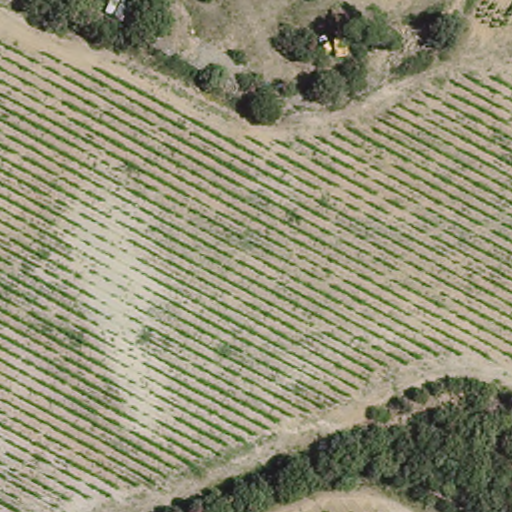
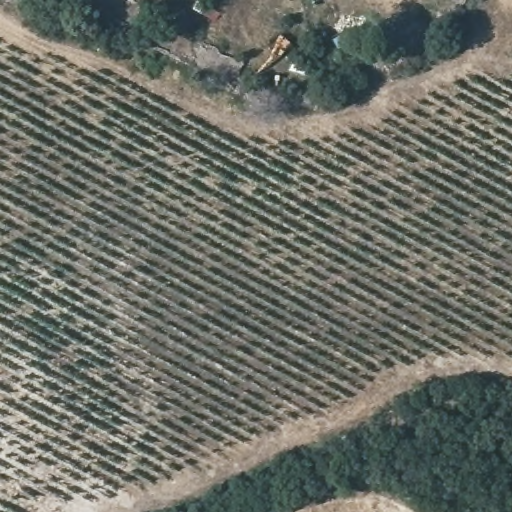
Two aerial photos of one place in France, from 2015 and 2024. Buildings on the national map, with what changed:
unchanged [(113,0),(129,7),(120,22),(100,14),(113,0)]

